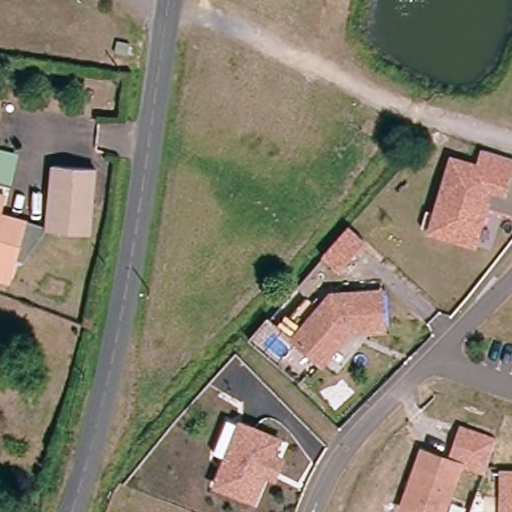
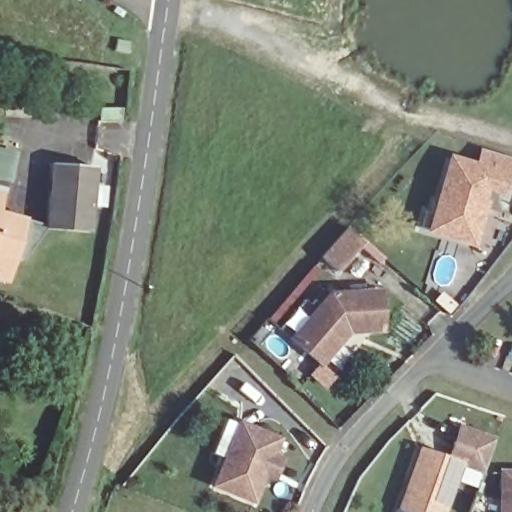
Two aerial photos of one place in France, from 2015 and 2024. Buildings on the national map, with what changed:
unchanged [(478,171),(484,155),(512,165),(512,170),(502,198),(486,192),(475,220),(478,221),(470,248),(443,239),(427,232),(433,215),(452,162),(478,171)]
unchanged [(51,168),(94,173),(85,239),(45,232),(51,168)]
unchanged [(6,204),(2,220),(21,228),(0,288),(0,202),(6,204)]
unchanged [(347,225),(363,240),(336,269),(320,255),(347,225)]
unchanged [(289,335),(328,292),(380,291),(382,330),(363,330),(362,325),(345,325),(340,331),(340,336),(317,361),(289,335)]
unchanged [(271,478),(262,475),(251,500),(212,483),(239,423),(277,440),(270,458),(279,462),(271,478)]
unchanged [(460,427),(496,441),(485,473),(460,465),(443,512),(412,512),(399,507),(420,450),(448,460),(460,427)]
unchanged [(512,512),(502,512),(503,474),(512,474),(512,512)]

